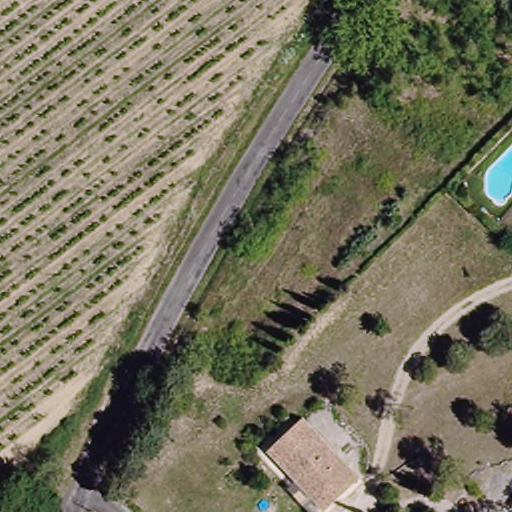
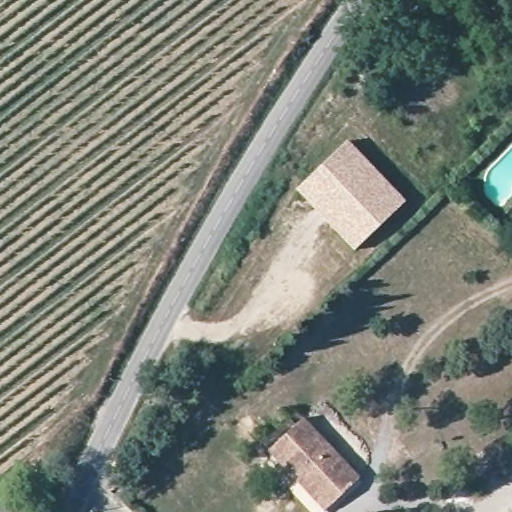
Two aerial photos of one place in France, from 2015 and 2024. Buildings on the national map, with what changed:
new [(298,190),(347,143),(405,202),(353,251),(298,190)]
unchanged [(302,478),(275,447),(312,415),(368,478),(336,507),(331,512),(320,512),(296,484),(302,478)]

